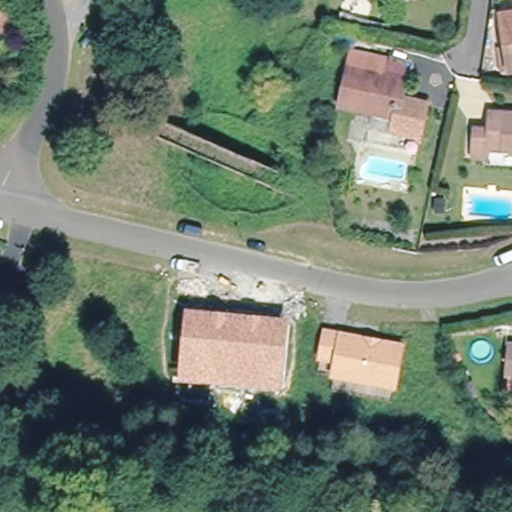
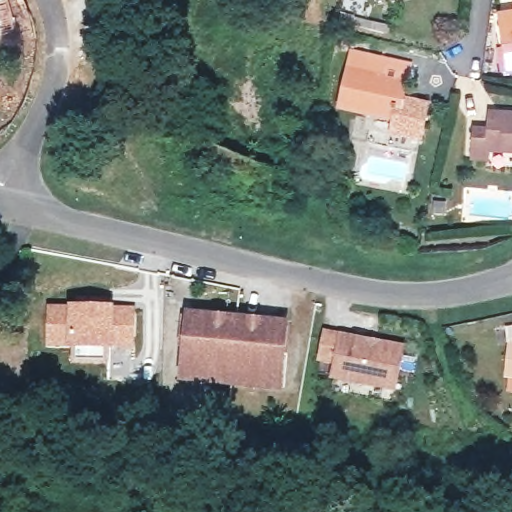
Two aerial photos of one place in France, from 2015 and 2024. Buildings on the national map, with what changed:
unchanged [(4,0),(11,29),(0,32),(0,0),(4,0)]
unchanged [(510,67),(502,68),(498,44),(506,42),(501,11),(512,9),(512,67),(510,67)]
unchanged [(342,14),(389,26),(388,32),(340,20),(342,14)]
unchanged [(354,55),(379,60),(376,75),(405,81),(397,120),(342,108),(354,55)]
new [(430,101),(423,142),(389,135),(392,119),(397,120),(402,96),(430,101)]
unchanged [(489,130),(489,113),(512,114),(512,151),(488,150),(487,159),(472,159),(474,130),(489,130)]
new [(76,303),(77,295),(109,294),(108,304),(136,305),(135,346),(113,346),(105,347),(105,360),(77,360),(77,345),(69,345),(49,345),(50,302),(76,303)]
unchanged [(282,391),(179,382),(185,310),(289,320),(282,391)]
unchanged [(339,332),(406,345),(398,391),(331,379),(333,363),(317,362),(322,328),(339,332)]

